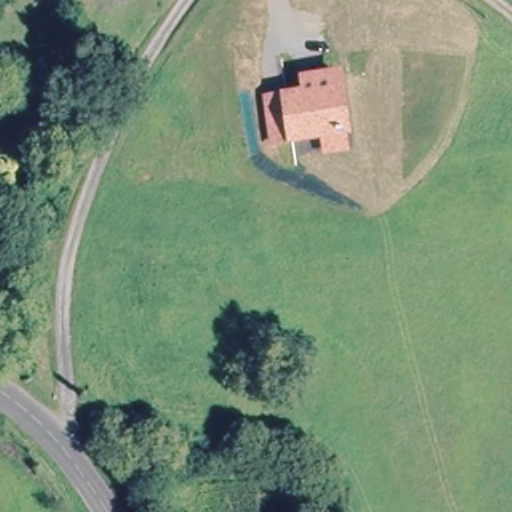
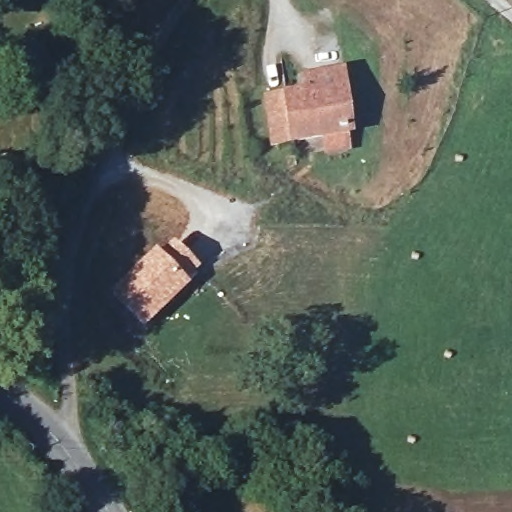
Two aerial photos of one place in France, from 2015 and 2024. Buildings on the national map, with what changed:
unchanged [(353,135),(346,136),(348,153),(323,156),(321,141),(269,147),(263,95),(301,89),(300,77),(342,71),(353,135)]
new [(157,250),(171,238),(202,268),(190,283),(143,328),(109,290),(155,248),(157,250)]

